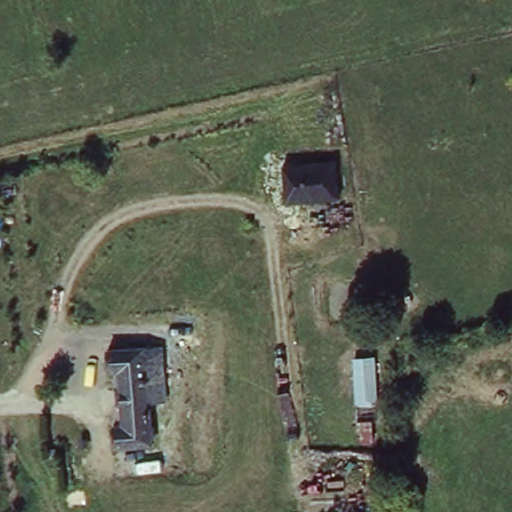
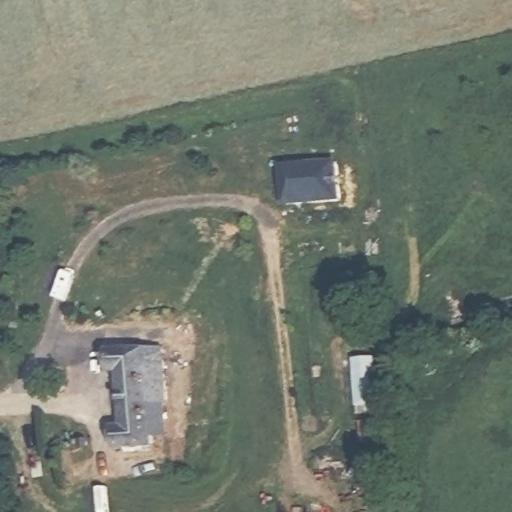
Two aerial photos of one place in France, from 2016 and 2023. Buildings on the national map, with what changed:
unchanged [(338,192),(287,205),(278,169),(330,156),(338,192)]
unchanged [(155,402),(159,448),(117,451),(114,427),(122,427),(120,375),(111,375),(110,353),(150,350),(167,349),(168,372),(170,402),(155,402)]
unchanged [(376,355),(377,400),(357,401),(353,356),(376,355)]
unchanged [(363,420),(365,442),(350,441),(350,420),(363,420)]

